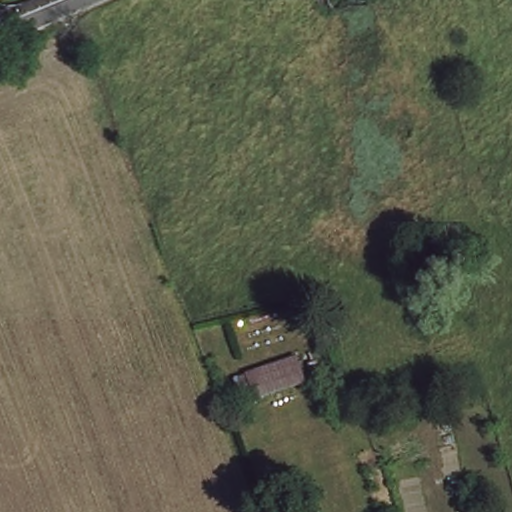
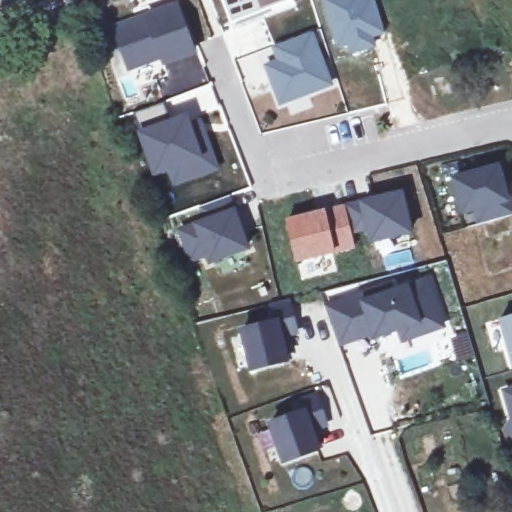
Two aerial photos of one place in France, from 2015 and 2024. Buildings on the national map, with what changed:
new [(174,0),(193,51),(162,62),(160,56),(127,68),(111,22),(174,0)]
new [(296,1),(231,27),(221,0),(296,0),(296,1)]
new [(387,35),(374,39),(376,45),(346,54),(344,46),(336,48),(321,0),(375,0),(387,35)]
new [(273,57),(269,45),(315,28),(334,85),(278,106),(261,62),(273,57)]
new [(163,101),(168,117),(189,110),(192,118),(201,115),(221,171),(171,188),(165,175),(153,179),(135,129),(139,127),(134,112),(163,101)]
new [(500,161),(512,204),(512,214),(464,226),(447,176),(500,161)]
new [(403,187),(414,233),(368,244),(364,231),(353,234),(345,202),(403,187)]
new [(345,202),(353,234),(356,248),(294,263),(284,217),(345,202)]
new [(234,204),(251,249),(208,265),(206,258),(189,264),(175,228),(234,204)]
new [(346,300),(349,307),(425,280),(441,325),(419,334),(414,321),(359,341),(356,337),(335,345),(324,308),(346,300)]
new [(241,330),(276,322),(272,308),(289,304),(296,332),(284,337),(291,356),(286,360),(251,370),(241,330)]
demolished [(304,387),(254,406),(245,381),(298,363),(304,387)]
demolished [(446,405),(423,408),(417,388),(438,382),(446,405)]
new [(512,389),(512,435),(504,431),(510,419),(503,392),(512,389)]
new [(299,410),(296,400),(313,395),(324,425),(310,430),(318,449),(283,462),(268,423),(299,410)]

